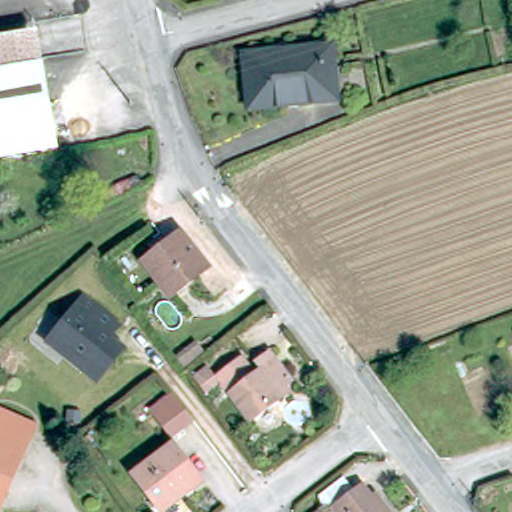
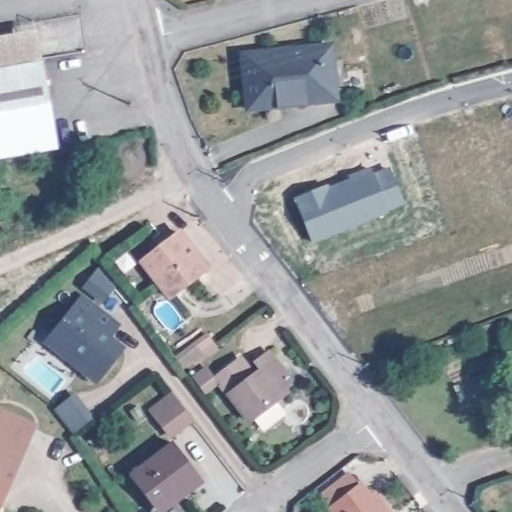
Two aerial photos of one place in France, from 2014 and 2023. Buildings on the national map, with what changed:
unchanged [(0,37),(35,31),(40,60),(0,67),(0,37)]
unchanged [(250,107),(245,56),(330,47),(336,99),(250,107)]
unchanged [(57,148),(0,158),(0,67),(40,60),(57,148)]
new [(350,179),(372,171),(374,177),(390,171),(404,205),(387,211),(388,214),(314,244),(297,201),(328,188),(350,179)]
unchanged [(143,262),(182,232),(207,268),(170,297),(143,262)]
new [(100,269),(115,289),(103,303),(85,287),(95,274),(100,269)]
unchanged [(98,383),(45,344),(80,296),(120,326),(112,338),(125,347),(98,383)]
unchanged [(182,360),(175,350),(195,336),(202,346),(182,360)]
unchanged [(227,397),(219,386),(207,394),(197,381),(208,373),(212,378),(241,357),(255,376),(260,373),(253,365),(258,361),(270,352),(292,380),(283,387),(288,394),(281,399),(248,424),(227,397)]
new [(172,392),(190,416),(170,432),(152,408),(172,392)]
unchanged [(14,471),(12,477),(8,484),(0,504),(0,414),(33,428),(14,471)]
unchanged [(158,504),(132,469),(171,441),(201,481),(182,494),(162,509),(158,504)]
unchanged [(334,512),(332,510),(362,487),(372,499),(375,496),(388,512),(334,512)]

